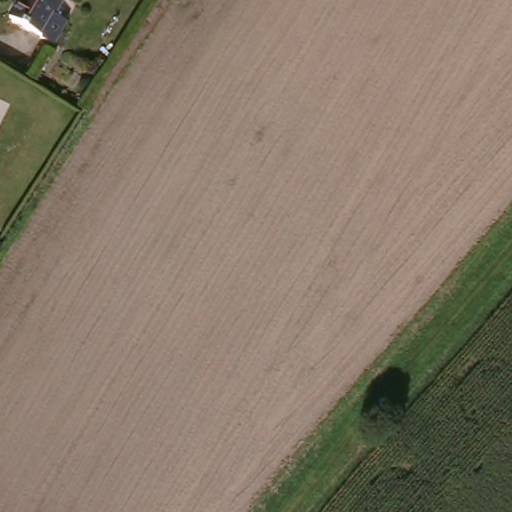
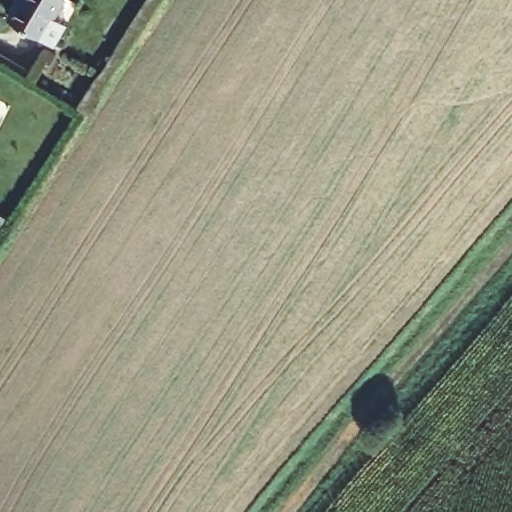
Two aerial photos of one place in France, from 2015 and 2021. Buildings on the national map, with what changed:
unchanged [(53,46),(41,40),(8,22),(22,0),(63,0),(52,19),(66,26),(53,46)]
unchanged [(0,234),(0,232),(1,232),(0,234)]

